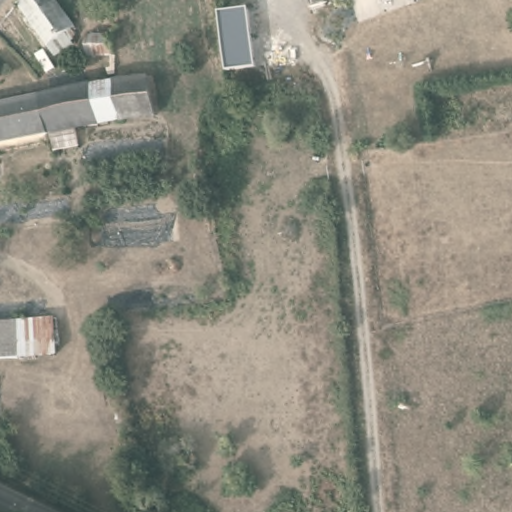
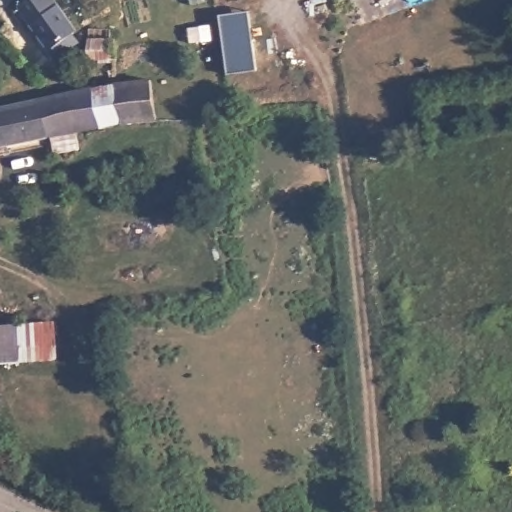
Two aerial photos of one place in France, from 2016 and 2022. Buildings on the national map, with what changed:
unchanged [(78,24),(74,43),(77,50),(66,62),(17,3),(20,0),(60,0),(78,24)]
unchanged [(258,71),(230,75),(221,15),(249,11),(258,71)]
unchanged [(116,55),(87,46),(92,29),(120,38),(116,55)]
unchanged [(95,90),(110,86),(117,85),(164,74),(171,108),(114,118),(85,124),(67,127),(68,146),(44,150),(40,132),(0,140),(0,110),(80,93),(95,90)]
unchanged [(59,353),(0,357),(0,319),(57,315),(59,353)]

